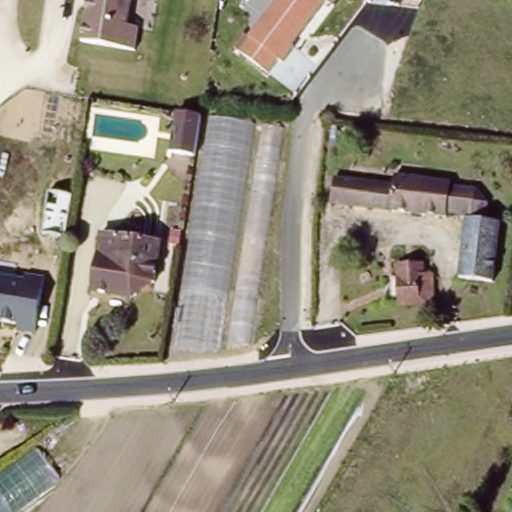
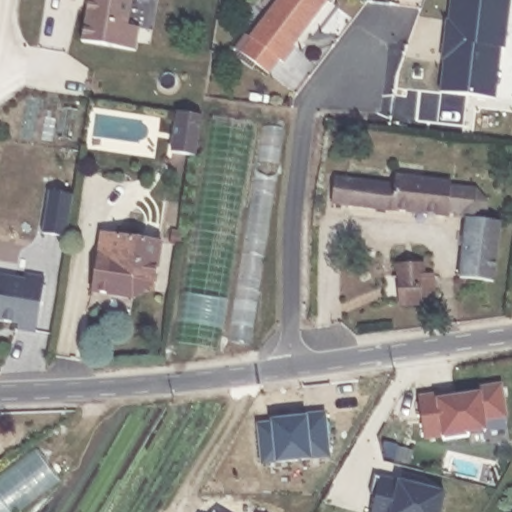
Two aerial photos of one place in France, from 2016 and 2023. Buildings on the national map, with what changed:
unchanged [(130,27),(141,30),(137,55),(79,46),(86,0),(134,0),(130,27)]
unchanged [(269,77),(240,52),(275,0),(327,0),(269,77)]
new [(448,0),(508,0),(502,48),(497,47),(491,99),(439,92),(448,0)]
unchanged [(170,153),(175,112),(201,115),(195,157),(170,153)]
unchanged [(283,128),(245,355),(179,345),(219,119),(283,128)]
unchanged [(329,177),(388,185),(389,176),(472,187),(480,197),(478,220),(494,222),(487,281),(454,277),(460,219),(326,204),(329,177)]
new [(47,193),(72,197),(65,239),(40,236),(47,193)]
unchanged [(149,277),(134,276),(132,288),(127,293),(95,288),(97,266),(89,266),(95,229),(155,238),(149,277)]
unchanged [(417,279),(425,279),(427,307),(392,310),(391,266),(417,265),(417,279)]
unchanged [(26,277),(27,272),(46,275),(37,329),(18,326),(18,320),(0,317),(0,272),(26,277)]
new [(484,422),(485,431),(467,433),(467,437),(441,442),(440,438),(425,439),(418,395),(435,392),(435,398),(480,391),(478,386),(502,383),(506,417),(484,422)]
unchanged [(53,483),(12,512),(0,512),(0,469),(35,445),(53,483)]
new [(370,488),(374,475),(379,476),(397,480),(445,492),(439,512),(371,512),(375,489),(370,488)]

